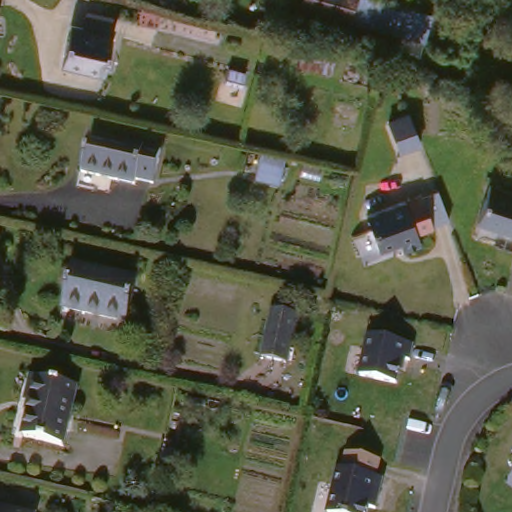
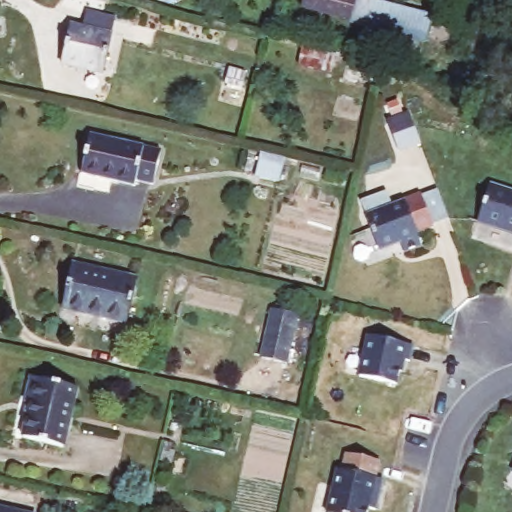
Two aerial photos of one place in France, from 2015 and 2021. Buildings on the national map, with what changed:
unchanged [(470,26),(458,54),(300,13),(302,0),(382,0),(470,26)]
unchanged [(61,68),(72,24),(116,35),(106,79),(61,68)]
unchanged [(413,137),(391,145),(381,116),(402,107),(413,137)]
unchanged [(159,147),(150,186),(138,183),(82,170),(90,131),(145,144),(159,147)]
unchanged [(511,219),(507,231),(471,219),(483,182),(512,192),(512,219),(511,219)]
unchanged [(400,239),(377,246),(367,211),(422,192),(432,224),(416,229),(420,242),(402,247),(400,239)]
unchanged [(69,268),(134,282),(125,327),(59,312),(69,268)]
unchanged [(272,302),(302,310),(290,365),(260,360),(272,302)]
unchanged [(407,338),(403,354),(396,352),(391,377),(353,368),(362,328),(407,338)]
unchanged [(72,454),(24,442),(37,383),(84,395),(72,454)]
unchanged [(338,466),(342,447),(375,455),(371,472),(378,474),(372,506),(365,504),(363,512),(328,512),(323,511),(333,465),(338,466)]
unchanged [(0,512),(0,507),(21,512),(0,512)]

